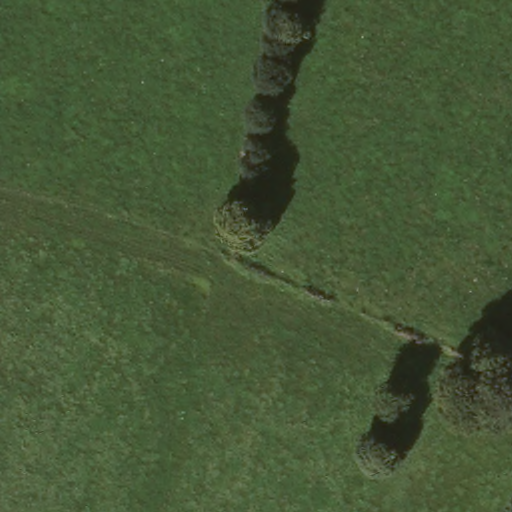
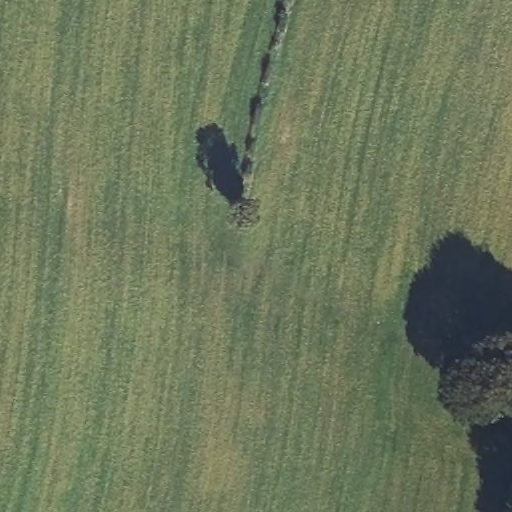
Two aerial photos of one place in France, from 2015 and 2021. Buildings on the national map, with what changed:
[]

